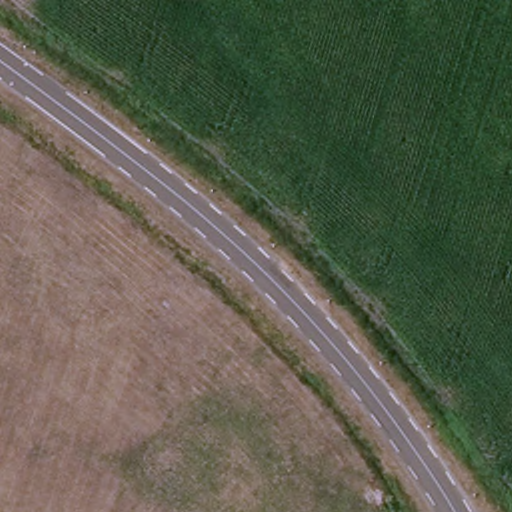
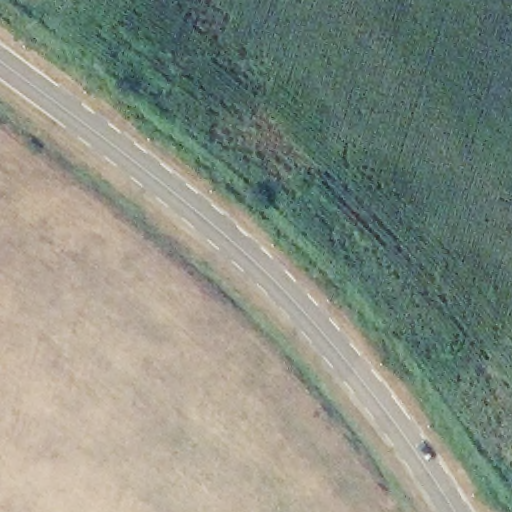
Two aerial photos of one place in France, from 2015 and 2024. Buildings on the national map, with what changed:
[]

